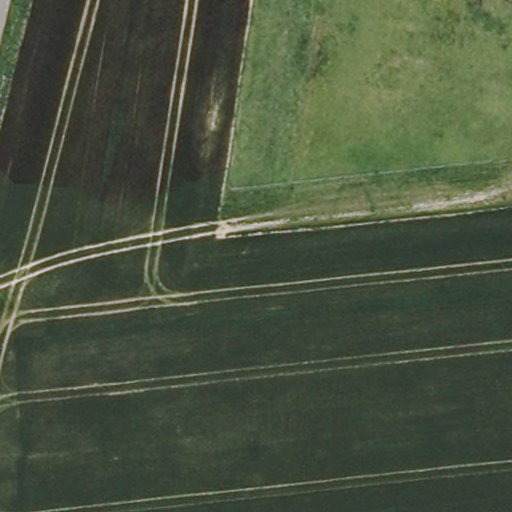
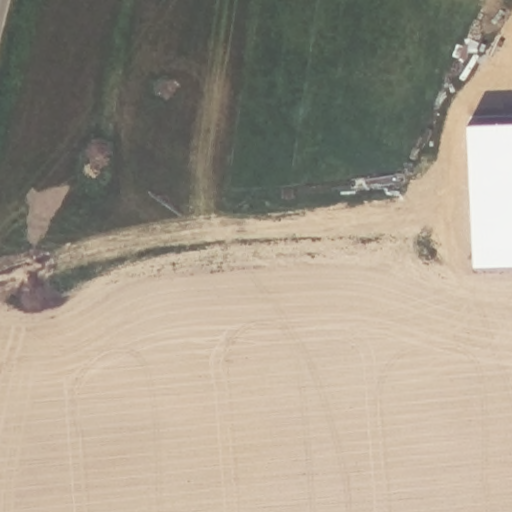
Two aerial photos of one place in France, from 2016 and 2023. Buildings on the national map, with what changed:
new [(512,117),(512,244),(475,245),(472,118),(512,117)]

